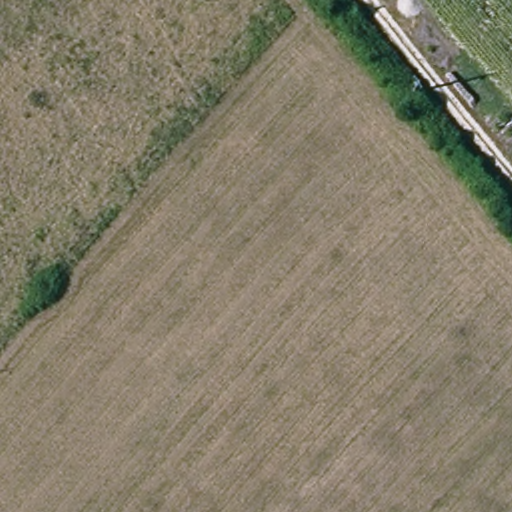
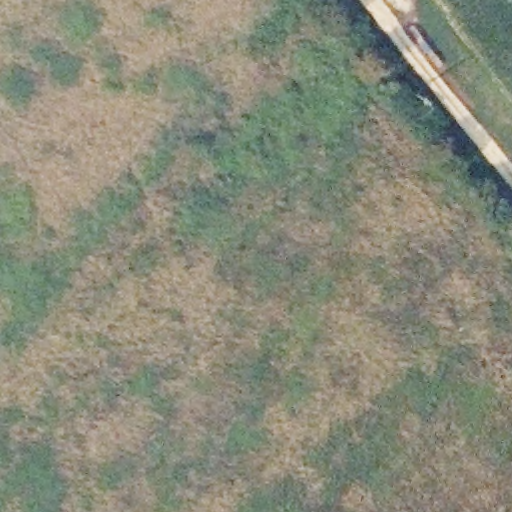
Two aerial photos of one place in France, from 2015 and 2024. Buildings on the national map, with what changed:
[]

